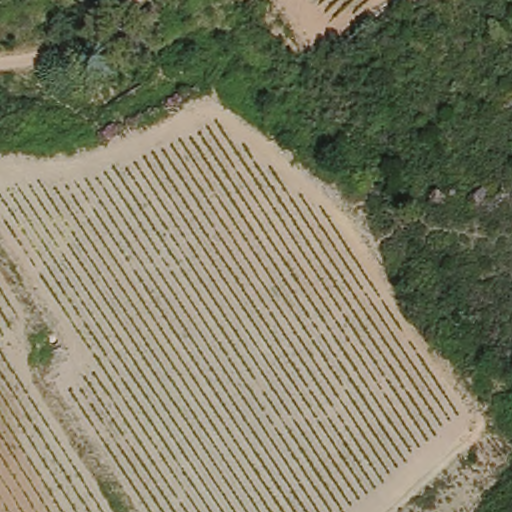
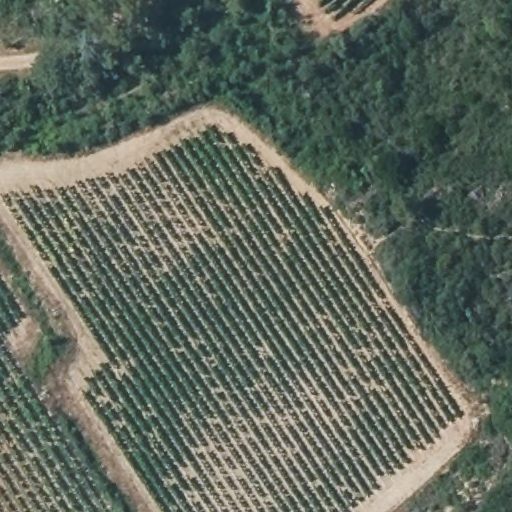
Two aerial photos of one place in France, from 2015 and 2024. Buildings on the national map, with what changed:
unchanged [(144,39),(129,19),(149,3),(164,24),(144,39)]

